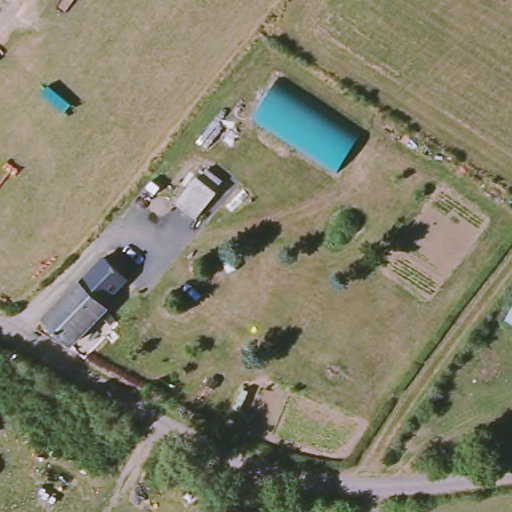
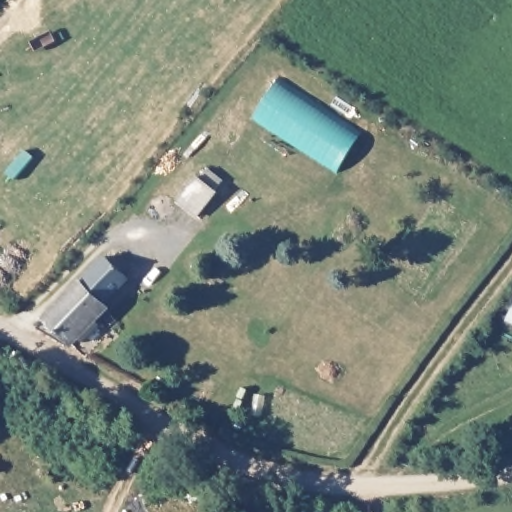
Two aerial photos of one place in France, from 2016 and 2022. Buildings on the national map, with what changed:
unchanged [(258,117),(280,84),(362,138),(340,172),(258,117)]
unchanged [(225,191),(205,212),(187,197),(208,175),(225,191)]
unchanged [(109,303),(115,307),(80,346),(52,326),(110,260),(114,264),(122,253),(138,265),(129,275),(132,277),(109,303)]
unchanged [(510,320),(512,317),(512,321),(510,320)]

